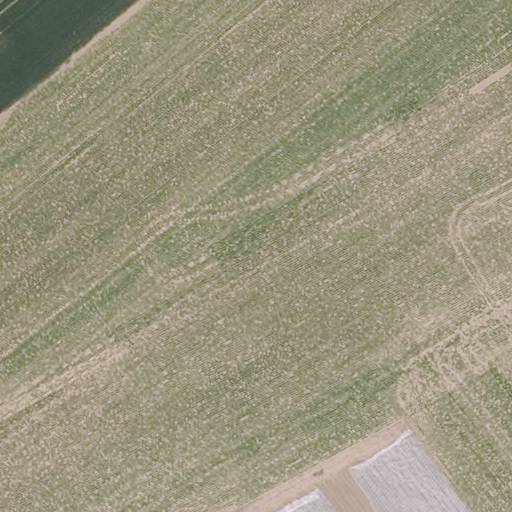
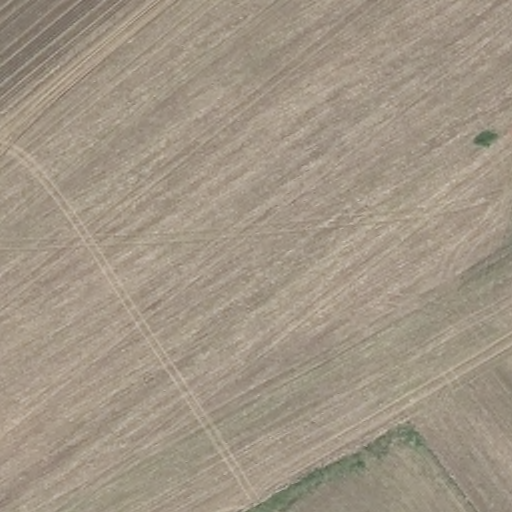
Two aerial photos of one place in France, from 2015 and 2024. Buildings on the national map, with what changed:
[]

